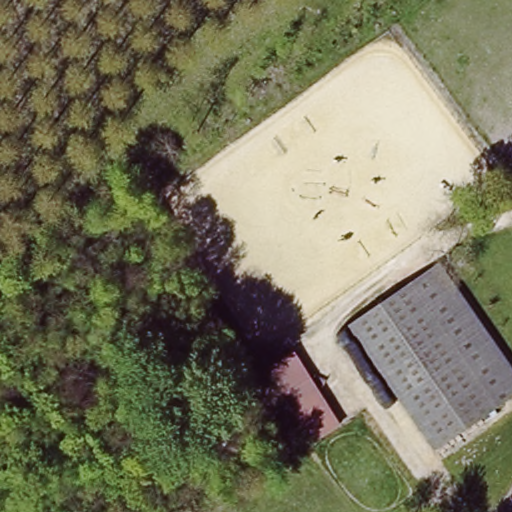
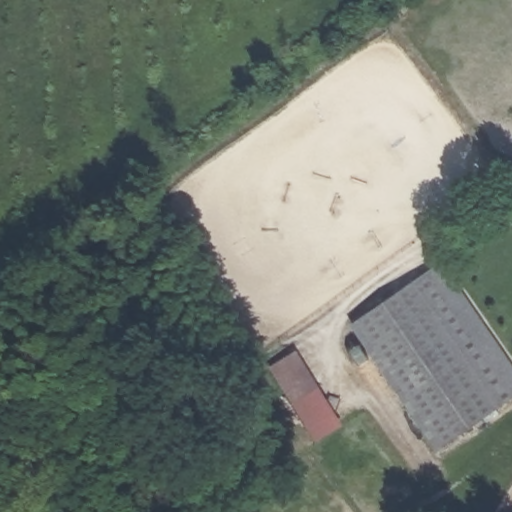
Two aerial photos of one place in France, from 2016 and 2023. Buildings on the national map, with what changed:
unchanged [(428,270),(512,396),(499,404),(415,279),(428,270)]
unchanged [(351,322),(415,279),(499,404),(435,447),(351,322)]
unchanged [(342,423),(315,439),(266,363),(295,346),(342,423)]

